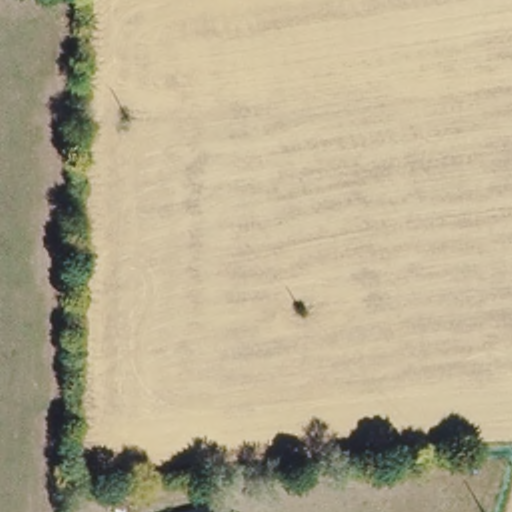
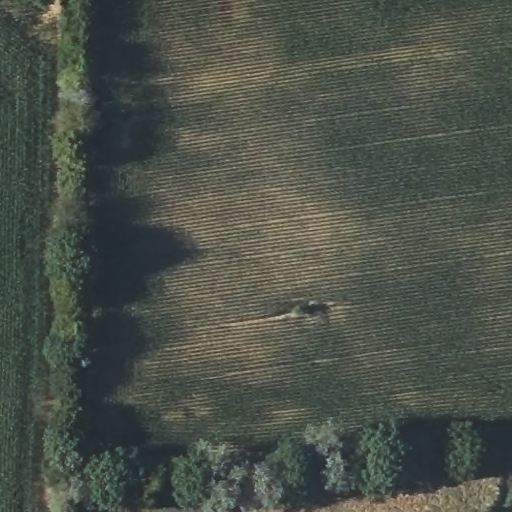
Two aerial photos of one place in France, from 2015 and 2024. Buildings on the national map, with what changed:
unchanged [(193,512),(217,506),(217,512),(193,512)]

